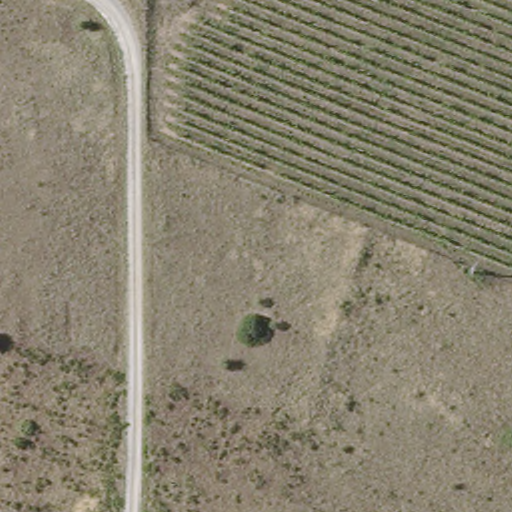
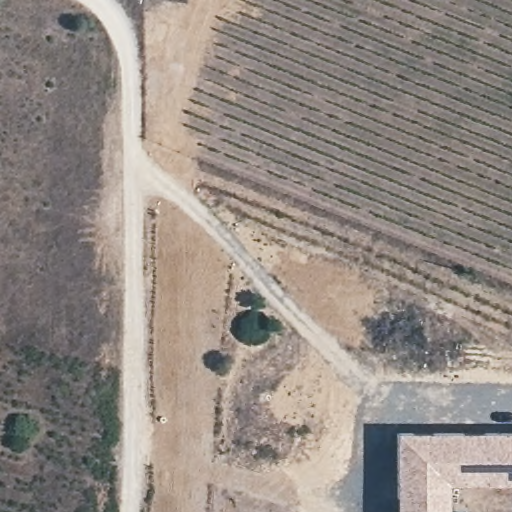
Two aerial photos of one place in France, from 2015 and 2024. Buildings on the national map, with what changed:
new [(512,435),(512,482),(448,481),(447,512),(404,512),(405,434),(512,435)]

